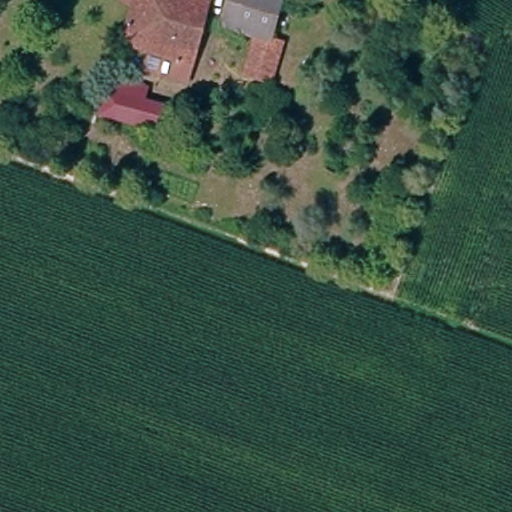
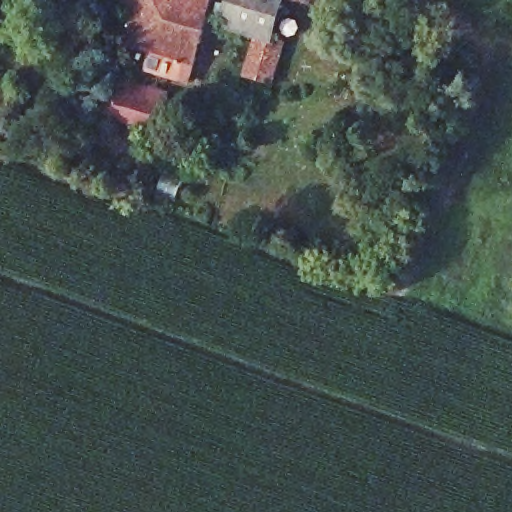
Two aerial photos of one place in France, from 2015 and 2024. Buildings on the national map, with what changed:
unchanged [(155,48),(125,40),(135,0),(134,0),(136,0),(211,0),(192,70),(151,60),(155,48)]
unchanged [(251,62),(262,31),(232,20),(237,0),(287,0),(263,67),(251,62)]
unchanged [(115,81),(145,90),(139,109),(155,113),(150,129),(106,114),(115,81)]

